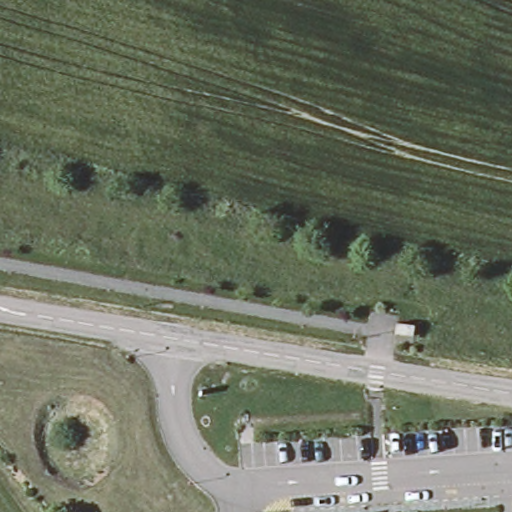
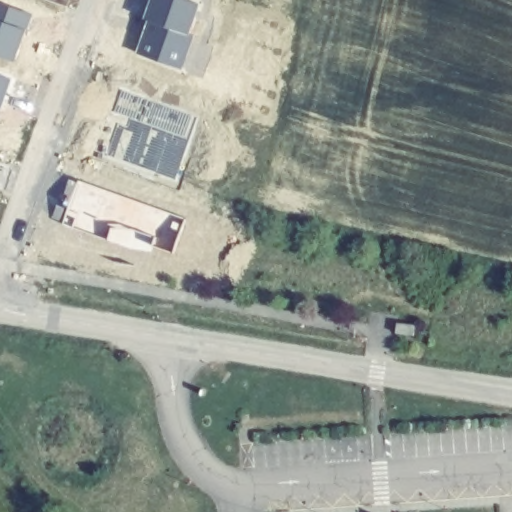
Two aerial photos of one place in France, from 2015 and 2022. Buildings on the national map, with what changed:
new [(196,6),(188,35),(191,37),(181,69),(137,52),(148,21),(143,19),(149,0),(179,0),(196,6)]
new [(29,15),(13,63),(0,59),(0,4),(29,15)]
new [(16,81),(0,126),(0,76),(16,81)]
new [(196,118),(174,179),(104,156),(114,124),(128,129),(129,120),(113,114),(119,90),(196,118)]
new [(184,221),(172,255),(151,250),(154,239),(109,225),(106,241),(62,224),(80,181),(184,221)]
unchanged [(419,339),(400,337),(401,326),(419,328),(419,339)]

